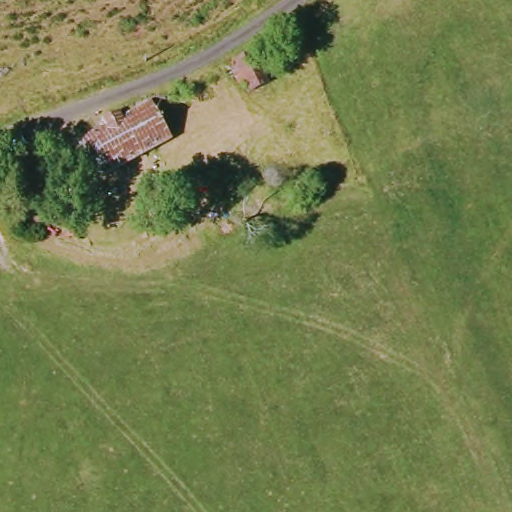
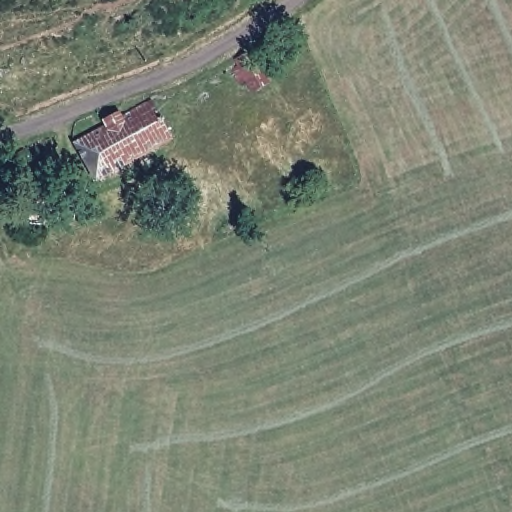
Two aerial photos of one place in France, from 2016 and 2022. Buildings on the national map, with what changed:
unchanged [(263,85),(259,81),(247,85),(240,74),(249,69),(242,60),(266,45),(287,67),(263,85)]
unchanged [(175,140),(102,182),(80,143),(99,131),(107,127),(107,123),(122,115),(125,119),(155,103),(175,140)]
unchanged [(15,152),(34,147),(40,162),(18,172),(15,152)]

